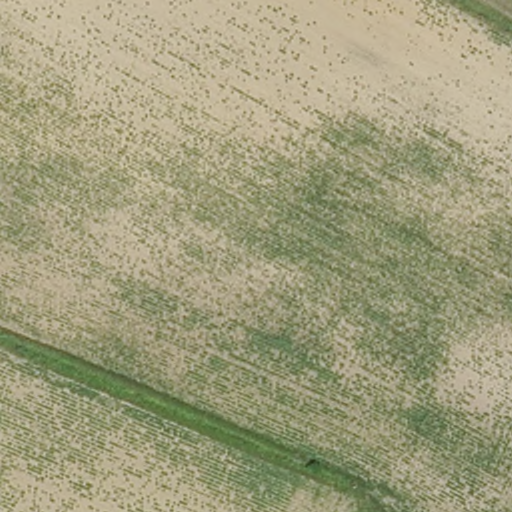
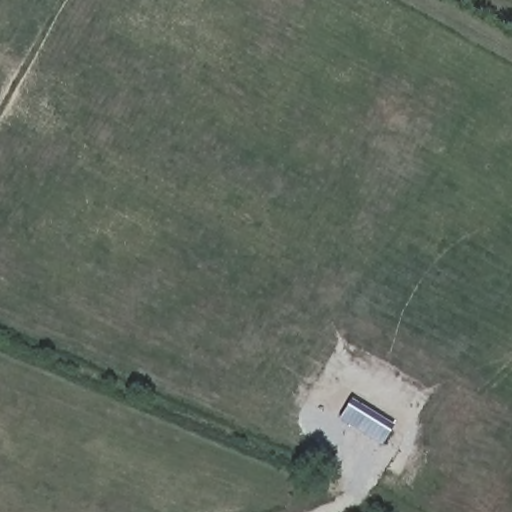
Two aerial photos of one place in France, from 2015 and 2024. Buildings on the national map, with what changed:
new [(393,425),(385,442),(343,417),(353,400),(393,425)]

